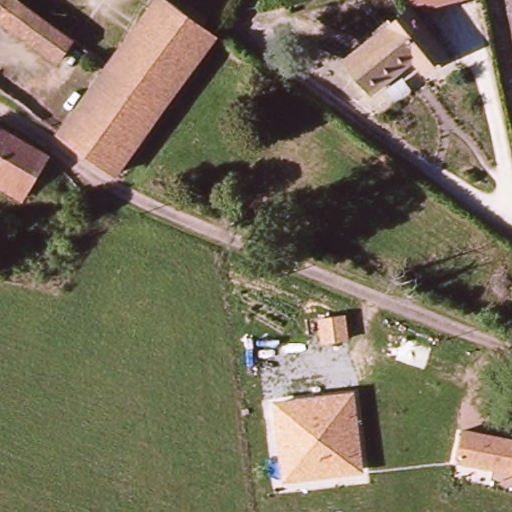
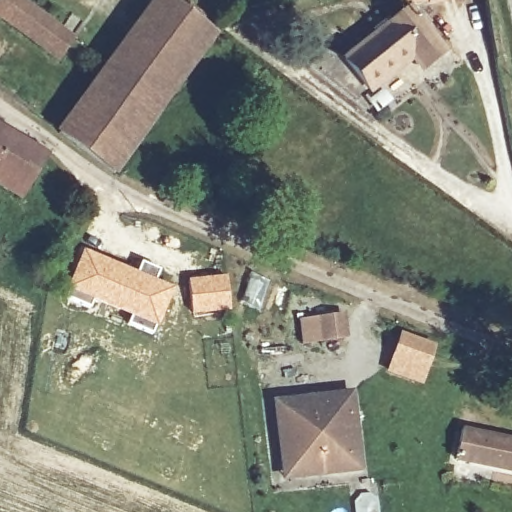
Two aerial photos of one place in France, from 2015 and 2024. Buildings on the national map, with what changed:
unchanged [(22,0),(78,40),(63,61),(0,15),(0,3),(2,0),(22,0)]
unchanged [(167,0),(174,3),(215,32),(162,104),(106,67),(153,0),(167,0)]
unchanged [(409,7),(404,12),(401,0),(462,0),(413,12),(409,7)]
unchanged [(409,7),(444,52),(423,69),(413,56),(370,90),(346,59),(409,7)]
unchanged [(57,137),(106,67),(162,104),(112,170),(57,137)]
unchanged [(51,160),(23,205),(0,192),(0,128),(51,160)]
new [(82,248),(136,271),(140,261),(161,270),(156,280),(174,287),(152,337),(125,325),(129,316),(92,300),(90,306),(65,293),(82,248)]
new [(227,274),(230,311),(192,316),(187,278),(227,274)]
new [(347,316),(349,340),(328,343),(307,346),(304,321),(325,318),(347,316)]
new [(407,339),(435,348),(427,371),(399,361),(407,339)]
unchanged [(356,391),(365,469),(283,478),(274,400),(356,391)]
unchanged [(512,475),(452,467),(460,426),(512,431),(512,475)]

